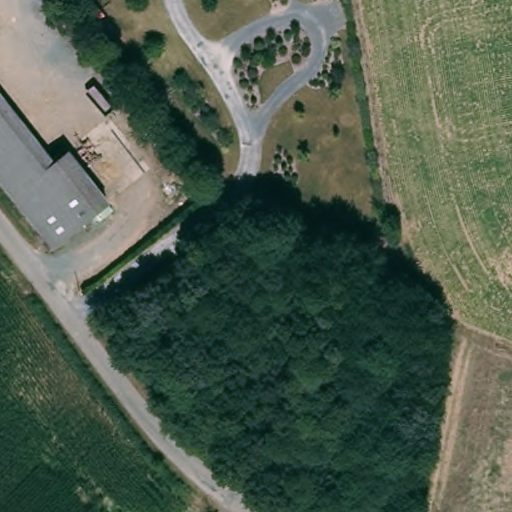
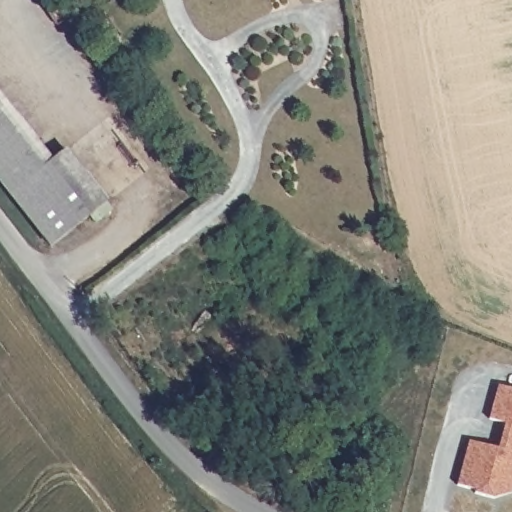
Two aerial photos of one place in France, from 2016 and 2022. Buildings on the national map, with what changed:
unchanged [(38,171),(61,152),(101,203),(46,247),(5,196),(0,190),(0,123),(38,171)]
new [(476,492),(458,487),(470,443),(499,451),(506,425),(493,422),(502,388),(512,391),(512,492),(494,500),(475,495),(476,492)]

